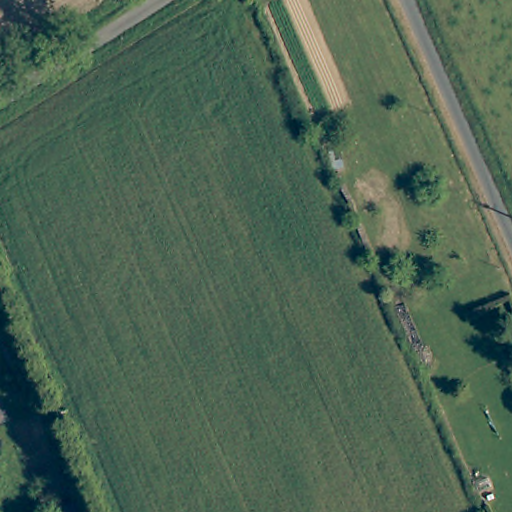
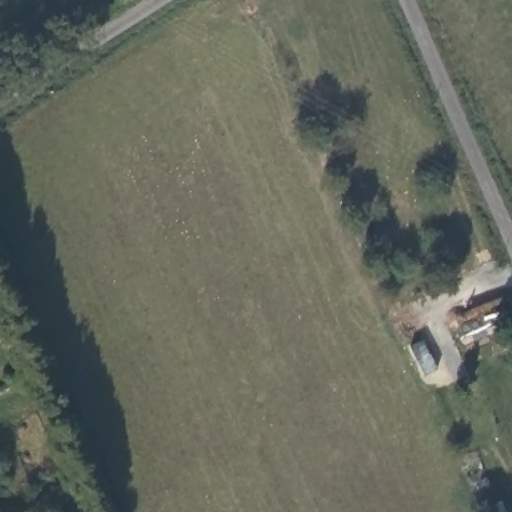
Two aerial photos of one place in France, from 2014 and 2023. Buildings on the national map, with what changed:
unchanged [(6,313),(0,315),(0,300),(6,313)]

